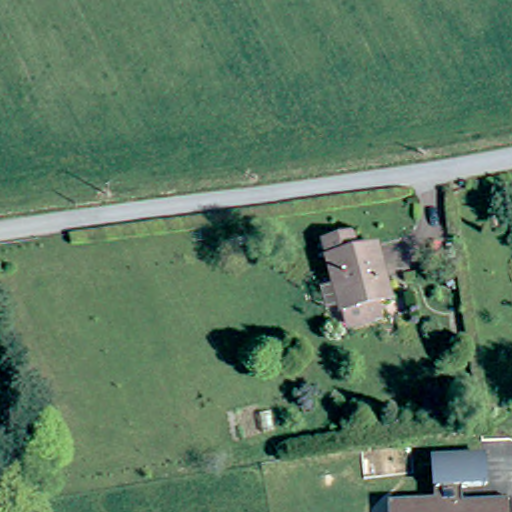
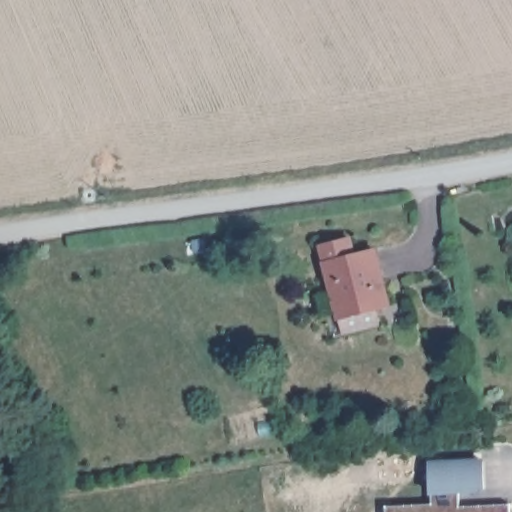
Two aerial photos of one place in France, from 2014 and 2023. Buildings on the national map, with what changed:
unchanged [(338,336),(334,321),(318,251),(341,245),(345,259),(369,253),(383,309),(375,310),(378,326),(338,336)]
unchanged [(488,458),(492,490),(429,492),(428,463),(488,458)]
unchanged [(509,512),(387,512),(387,507),(509,502),(509,512)]

